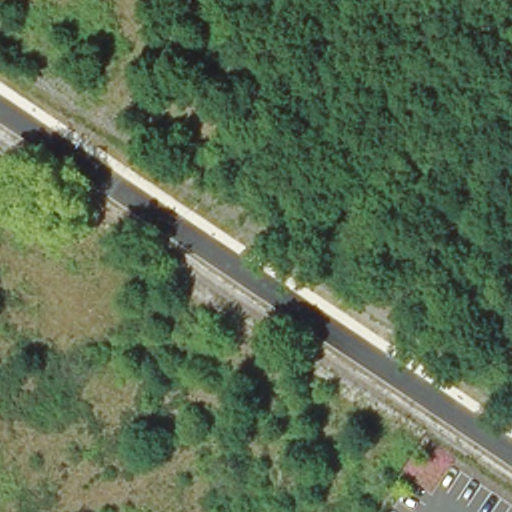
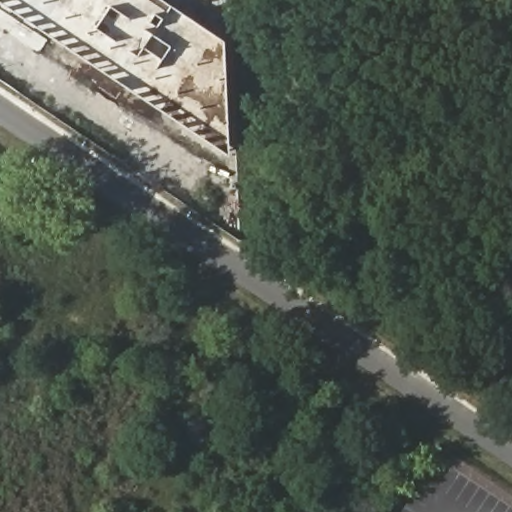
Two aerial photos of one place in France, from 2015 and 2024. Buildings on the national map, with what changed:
new [(0,4),(0,0),(162,0),(223,42),(227,157),(0,4)]

